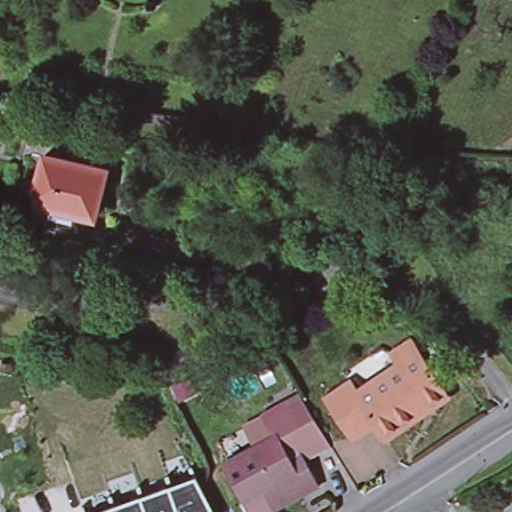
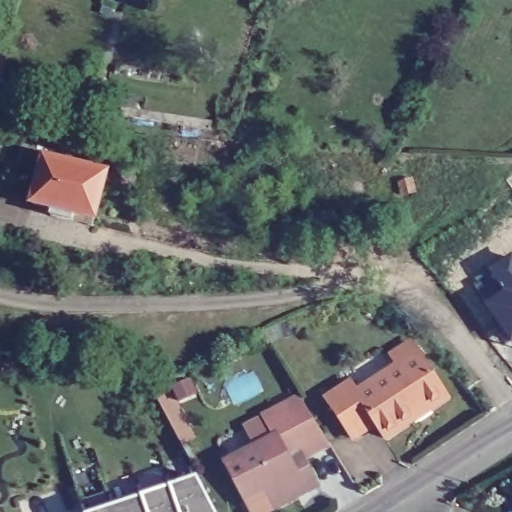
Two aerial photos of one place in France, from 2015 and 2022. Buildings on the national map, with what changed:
unchanged [(0,75),(0,53),(5,55),(0,75)]
unchanged [(101,174),(88,230),(48,220),(50,211),(30,206),(40,160),(101,174)]
new [(485,300),(502,289),(489,269),(512,253),(512,341),(510,342),(485,300)]
unchanged [(355,386),(363,397),(393,376),(395,380),(407,372),(397,358),(416,345),(453,400),(435,412),(433,410),(420,418),(422,421),(392,442),(382,427),(360,442),(332,401),(355,386)]
unchanged [(300,400),(331,448),(305,461),(289,431),(277,437),(267,418),(300,400)]
unchanged [(277,437),(289,431),(305,461),(315,481),(320,488),(308,494),(275,512),(244,512),(242,507),(247,505),(225,465),(277,437)]
unchanged [(140,491),(142,496),(196,478),(214,512),(84,512),(84,511),(140,491)]

